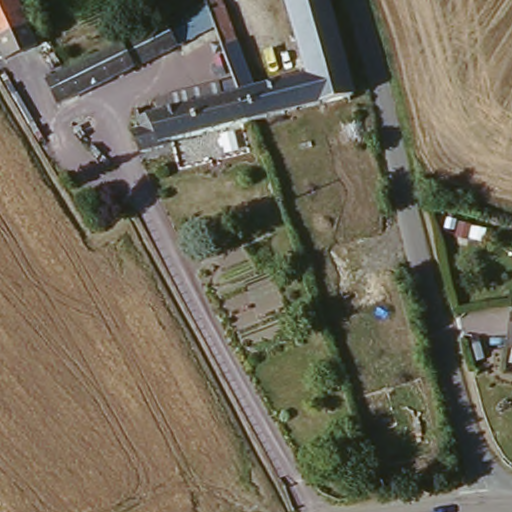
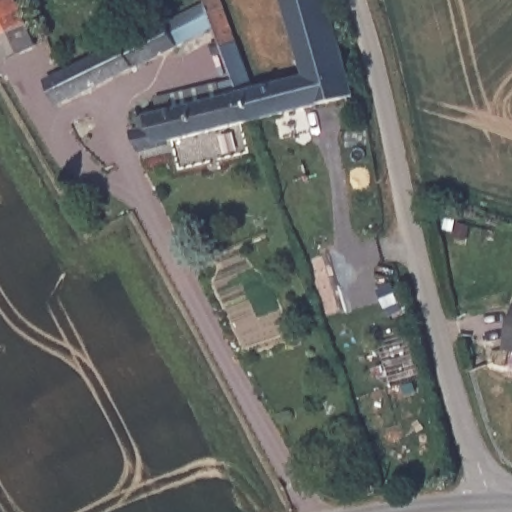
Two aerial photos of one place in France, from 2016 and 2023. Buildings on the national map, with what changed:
unchanged [(29,48),(1,60),(0,58),(0,0),(14,0),(26,29),(29,36),(26,37),(29,48)]
unchanged [(350,104),(237,118),(223,83),(200,22),(195,9),(216,2),(245,80),(294,72),(277,0),(326,0),(350,104)]
unchanged [(205,34),(59,100),(48,75),(195,9),(205,34)]
unchanged [(237,118),(139,150),(130,126),(146,124),(144,111),(226,89),(237,118)]
unchanged [(508,362),(511,344),(506,343),(512,316),(512,363),(508,362)]

